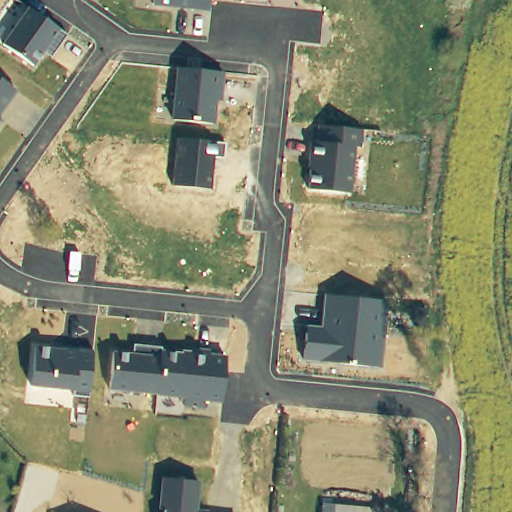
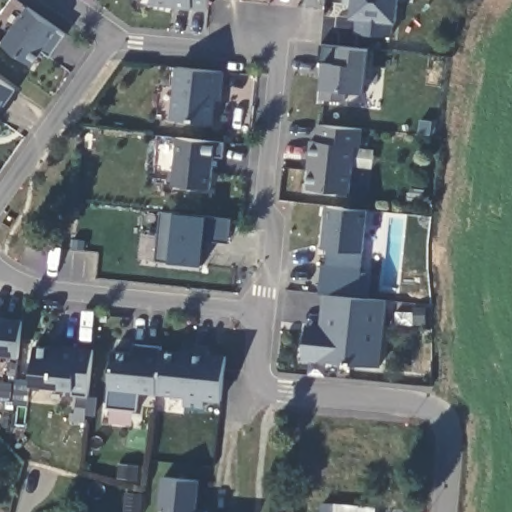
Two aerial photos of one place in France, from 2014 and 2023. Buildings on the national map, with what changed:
unchanged [(151,5),(152,0),(208,0),(207,10),(151,5)]
new [(356,36),(357,20),(350,20),(352,9),(342,7),(343,0),(401,0),(398,24),(393,23),(391,38),(356,36)]
unchanged [(27,8),(58,29),(65,34),(50,57),(44,51),(34,66),(2,44),(27,8)]
new [(321,101),(322,88),(325,66),(318,65),(320,45),(340,47),(370,48),(365,94),(346,93),(345,102),(321,101)]
unchanged [(176,69),(222,74),(221,101),(216,100),(214,123),(170,118),(176,69)]
unchanged [(0,80),(15,90),(0,113),(0,80)]
unchanged [(0,119),(2,121),(0,123),(0,119)]
unchanged [(311,169),(307,169),(311,141),(316,142),(318,126),(362,129),(360,147),(353,146),(350,192),(307,189),(311,169)]
unchanged [(176,138),(225,143),(222,158),(214,157),(210,190),(171,185),(176,138)]
new [(363,252),(360,269),(328,265),(330,249),(323,248),(328,207),(368,211),(363,252)]
new [(230,242),(210,241),(209,248),(205,247),(203,265),(171,262),(155,261),(160,213),(175,213),(208,216),(233,220),(230,242)]
unchanged [(306,326),(321,327),(323,296),(386,302),(380,368),(301,360),(306,326)]
new [(0,358),(0,319),(22,321),(19,360),(0,358)]
unchanged [(35,344),(92,350),(89,396),(72,395),(73,389),(30,386),(35,344)]
unchanged [(114,352),(134,352),(134,345),(161,347),(160,351),(182,353),(182,350),(191,351),(191,348),(210,349),(209,354),(226,356),(221,402),(204,400),(203,408),(183,406),(185,398),(110,389),(114,352)]
unchanged [(159,509),(162,478),(200,482),(197,509),(208,510),(208,512),(165,512),(165,510),(159,509)]
unchanged [(374,510),(374,512),(323,512),(323,505),(374,510)]

